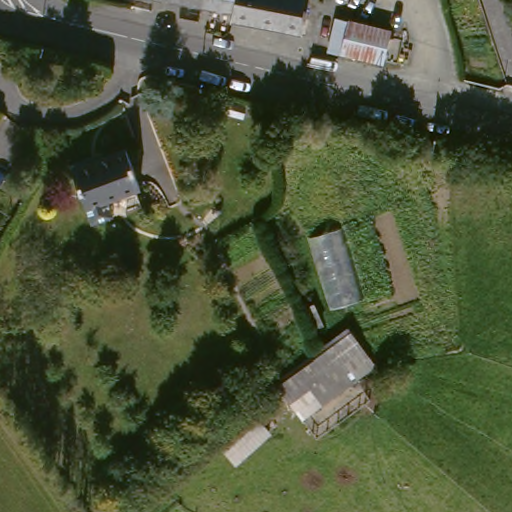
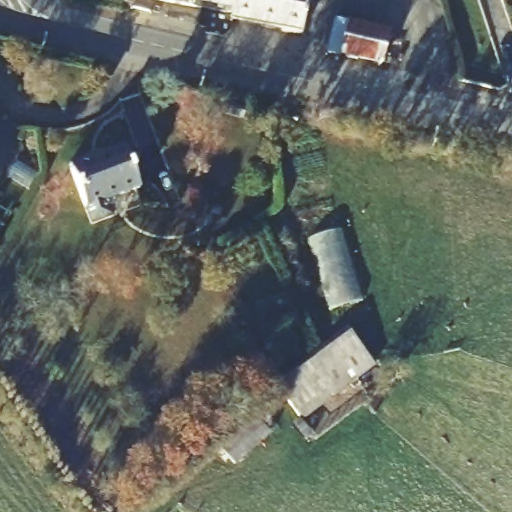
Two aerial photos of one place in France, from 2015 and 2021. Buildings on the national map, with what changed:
unchanged [(220,12),(149,0),(221,0),(220,12)]
unchanged [(306,32),(250,24),(250,17),(220,12),(221,0),(311,0),(306,32)]
unchanged [(392,62),(339,50),(348,20),(399,31),(392,62)]
unchanged [(128,145),(140,185),(136,185),(141,202),(89,216),(73,159),(128,145)]
unchanged [(367,304),(339,310),(314,237),(344,230),(367,304)]
unchanged [(302,325),(308,318),(324,334),(312,346),(297,361),(281,348),(302,325)]
unchanged [(355,330),(379,361),(304,421),(283,386),(355,330)]

